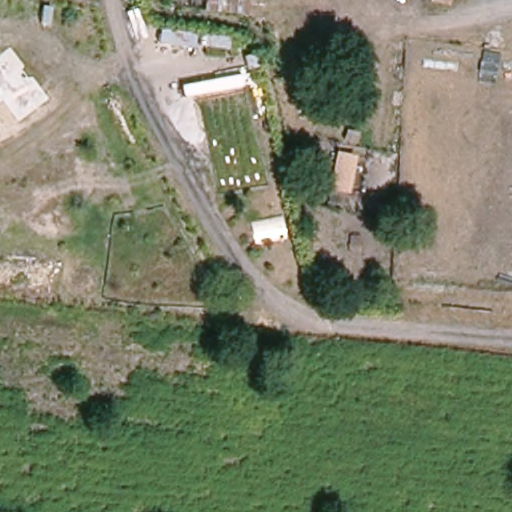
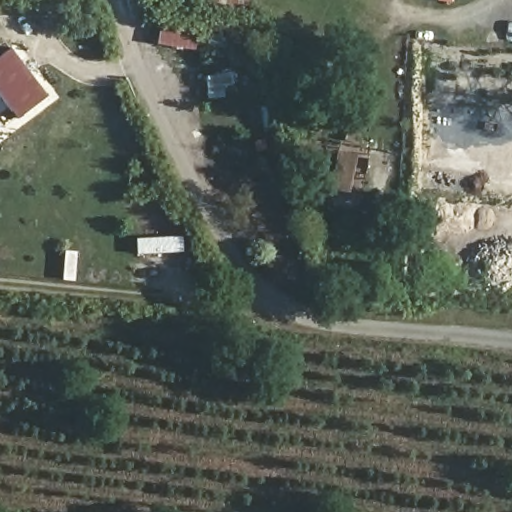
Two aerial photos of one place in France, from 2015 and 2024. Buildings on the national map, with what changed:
new [(18,119),(0,96),(0,55),(11,47),(48,95),(18,119)]
unchanged [(350,193),(330,190),(336,150),(357,155),(350,193)]

